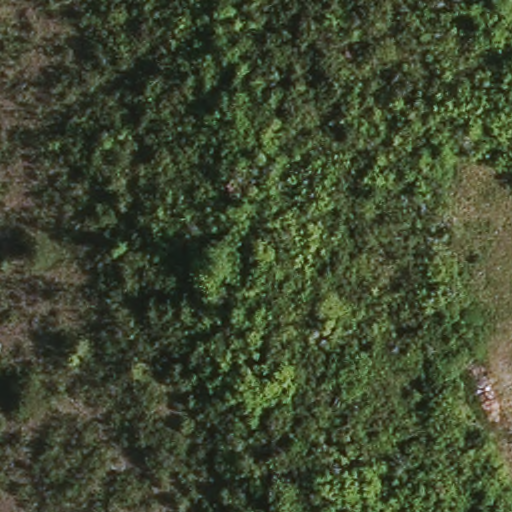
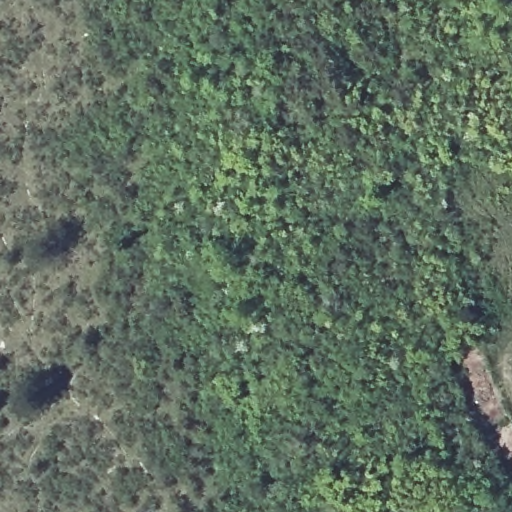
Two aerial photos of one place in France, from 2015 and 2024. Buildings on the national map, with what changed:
[]

